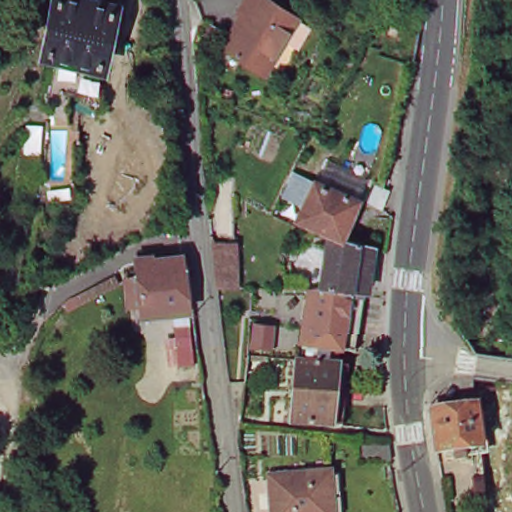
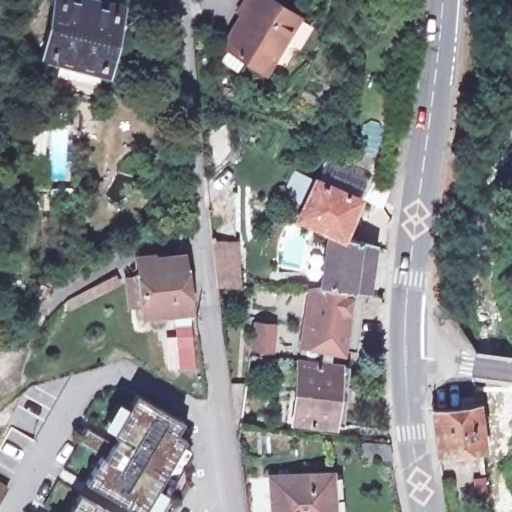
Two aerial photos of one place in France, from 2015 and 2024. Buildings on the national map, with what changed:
unchanged [(75,58),(58,54),(69,0),(102,0),(122,4),(105,89),(110,98),(101,103),(95,94),(68,88),(75,58)]
unchanged [(246,26),(235,19),(248,0),(251,0),(260,5),(295,27),(262,78),(227,56),(246,26)]
unchanged [(303,218),(326,163),(331,165),(383,185),(387,186),(382,203),(362,194),(347,236),(340,233),(303,218)]
demolished [(1,297),(14,184),(45,189),(33,299),(1,297)]
unchanged [(373,244),(367,293),(350,292),(324,291),(339,236),(340,233),(347,236),(373,244)]
unchanged [(241,287),(219,286),(214,242),(236,239),(238,258),(241,287)]
unchanged [(143,313),(140,260),(180,256),(186,309),(143,313)]
unchanged [(297,347),(305,348),(316,290),(324,291),(350,292),(341,353),(331,352),(330,366),(296,362),(297,347)]
unchanged [(276,323),(274,351),(251,350),(256,321),(276,323)]
unchanged [(191,363),(177,364),(176,349),(176,346),(190,345),(190,348),(191,363)]
unchanged [(330,366),(330,368),(338,369),(331,427),(290,423),(296,362),(330,366)]
new [(100,455),(103,458),(115,435),(111,433),(134,393),(180,420),(173,432),(182,438),(185,478),(166,512),(67,512),(100,455)]
unchanged [(477,450),(435,456),(428,419),(455,416),(453,406),(467,404),(468,412),(472,412),(477,450)]
unchanged [(385,461),(353,461),(350,443),(359,443),(359,436),(370,436),(370,440),(381,439),(385,461)]
unchanged [(331,470),(336,512),(273,512),(268,474),(331,470)]
new [(0,493),(0,483),(4,485),(0,493)]

